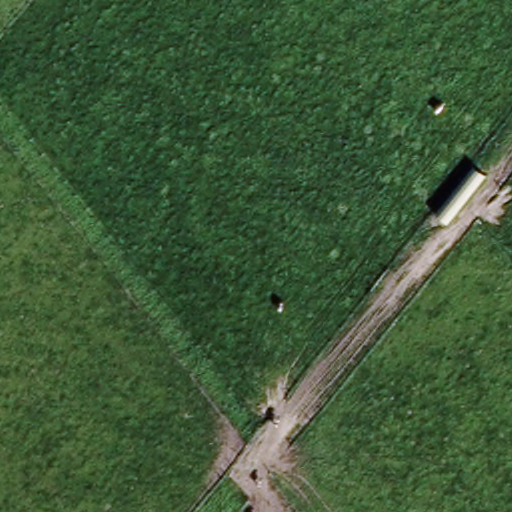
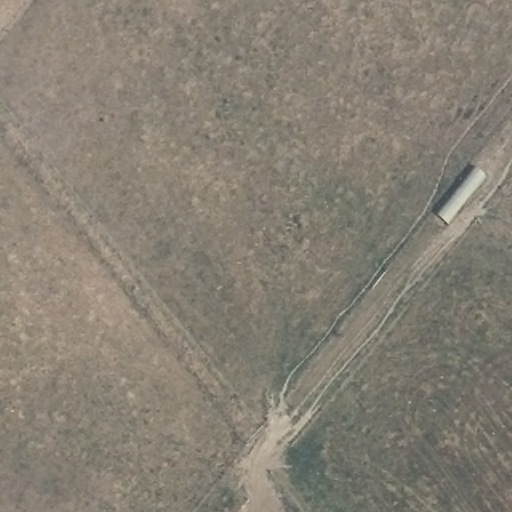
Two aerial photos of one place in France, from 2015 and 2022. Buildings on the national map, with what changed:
unchanged [(488,179),(449,228),(433,215),(471,165),(488,179)]

